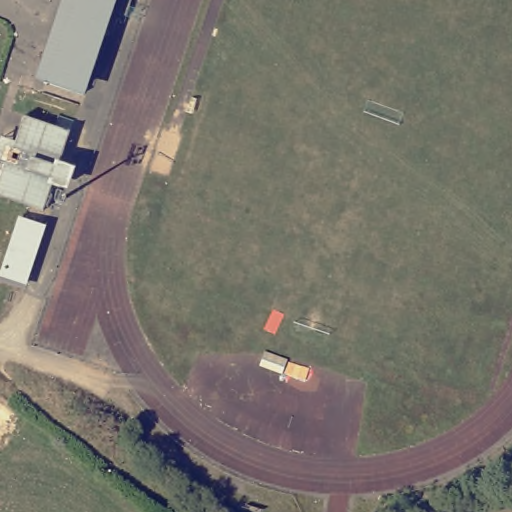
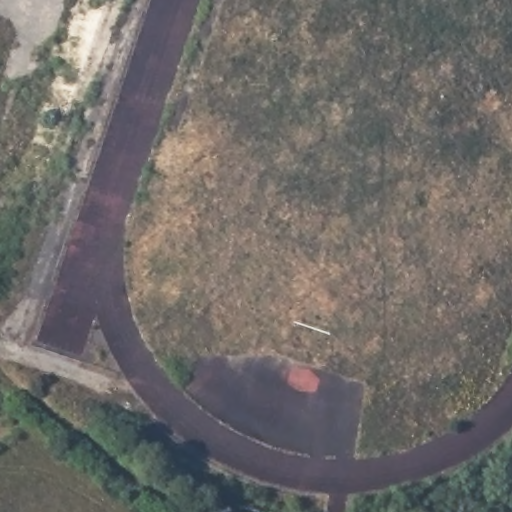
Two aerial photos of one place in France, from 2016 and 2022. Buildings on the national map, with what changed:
demolished [(107,0),(77,91),(62,86),(45,80),(72,0),(107,0)]
demolished [(44,208),(0,193),(0,140),(1,135),(17,139),(27,112),(71,127),(60,161),(55,176),(44,208)]
demolished [(22,288),(2,282),(25,219),(44,224),(22,288)]

